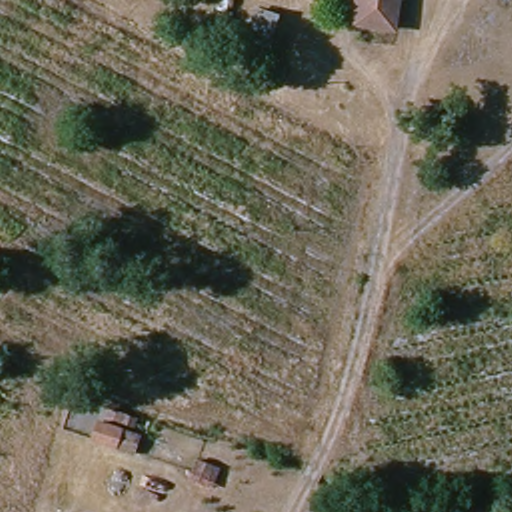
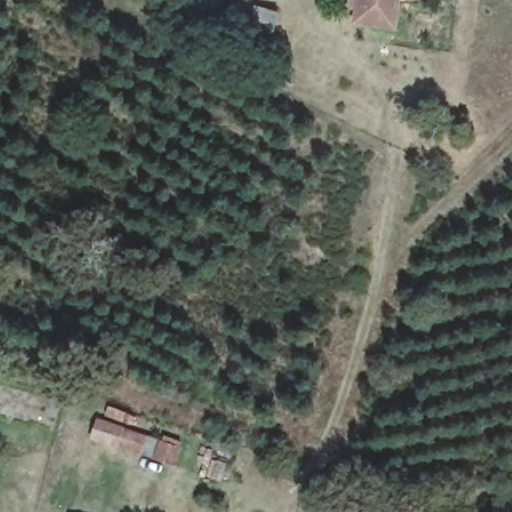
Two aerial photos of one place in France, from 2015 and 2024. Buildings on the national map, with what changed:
unchanged [(224,17),(217,32),(196,25),(201,12),(213,13),(217,0),(244,0),(237,19),(224,17)]
unchanged [(361,24),(364,0),(400,0),(396,28),(361,24)]
unchanged [(279,16),(264,49),(244,40),(258,7),(279,16)]
unchanged [(135,430),(142,433),(135,454),(92,439),(99,419),(104,420),(107,408),(139,416),(135,430)]

